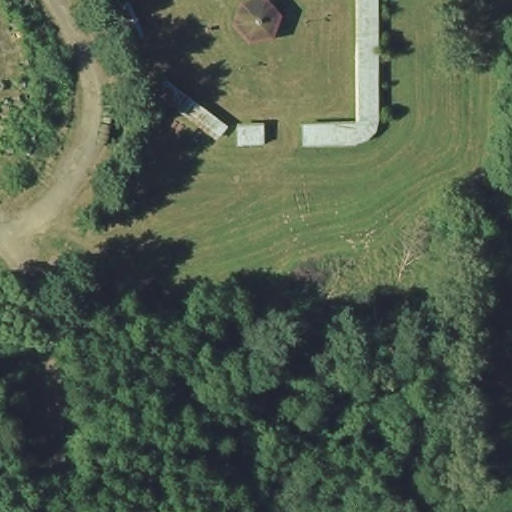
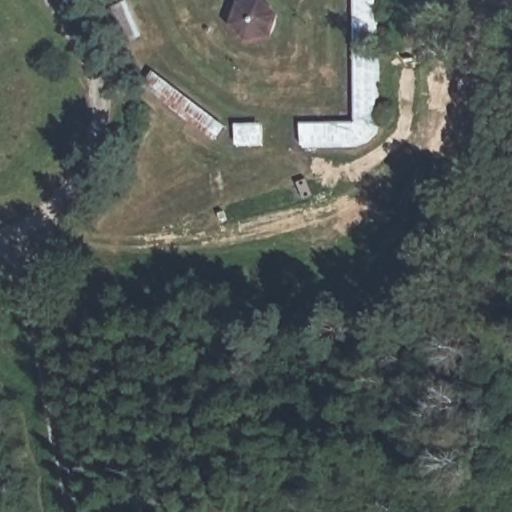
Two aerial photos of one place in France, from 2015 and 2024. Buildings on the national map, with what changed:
unchanged [(132,0),(135,0),(147,32),(126,41),(110,9),(132,0)]
unchanged [(273,0),(285,10),(281,27),(266,37),(247,39),(235,22),(247,1),(249,0),(273,0)]
unchanged [(363,144),(308,145),(306,124),(360,119),(358,0),(383,0),(385,133),(363,144)]
unchanged [(219,140),(142,85),(157,70),(231,124),(219,140)]
unchanged [(267,145),(239,144),(241,124),(266,122),(267,145)]
unchanged [(122,296),(110,298),(97,273),(110,268),(122,296)]

